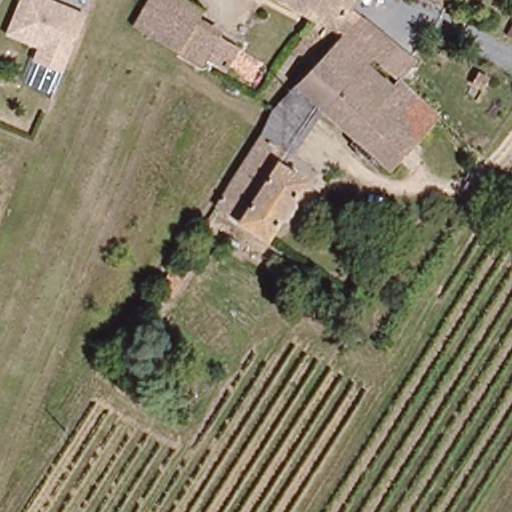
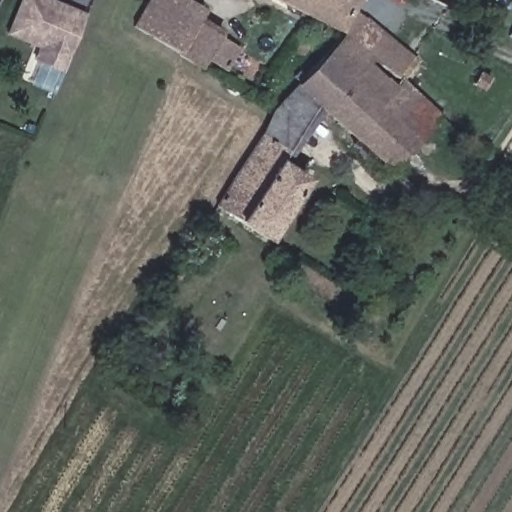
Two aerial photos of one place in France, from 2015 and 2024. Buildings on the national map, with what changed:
unchanged [(86,17),(67,63),(65,70),(37,59),(42,46),(10,33),(23,0),(53,0),(87,13),(86,17)]
unchanged [(134,28),(132,27),(149,0),(184,0),(202,11),(194,23),(175,53),(134,28)]
unchanged [(301,5),(289,0),(303,0),(301,5)]
unchanged [(366,148),(315,101),(292,80),(341,25),(332,20),(342,0),(343,0),(385,35),(412,57),(397,74),(435,112),(385,166),(366,148)]
unchanged [(303,0),(342,0),(332,20),(301,5),(303,0)]
unchanged [(194,23),(219,39),(200,68),(175,53),(194,23)]
unchanged [(292,80),(315,101),(296,124),(287,134),(264,118),(274,102),(292,80)]
unchanged [(287,134),(275,155),(303,173),(262,234),(211,201),(264,118),(287,134)]

